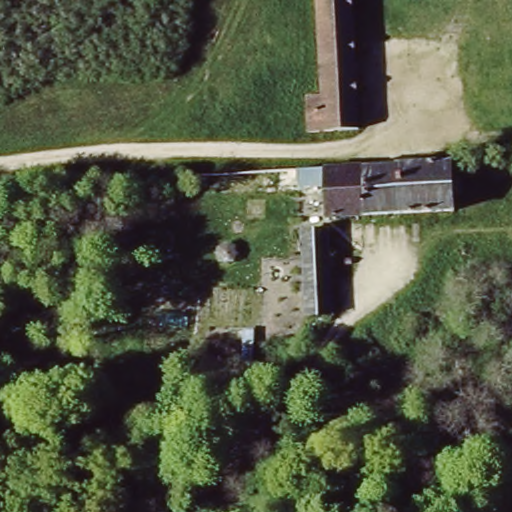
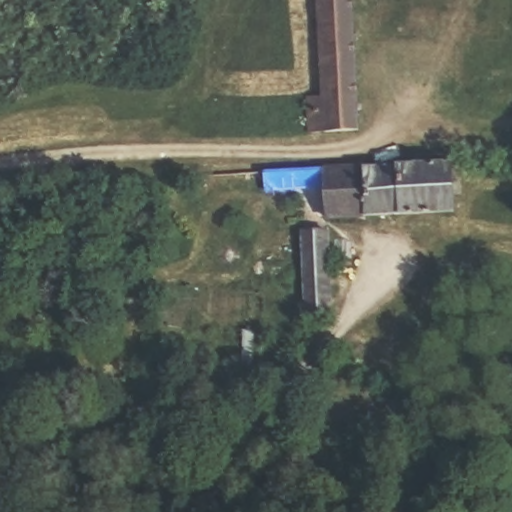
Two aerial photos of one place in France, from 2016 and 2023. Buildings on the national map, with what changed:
unchanged [(355,136),(309,138),(307,97),(315,95),(315,67),(320,66),(318,0),(351,0),(355,136)]
unchanged [(457,212),(330,222),(329,188),(214,189),(213,179),(455,162),(457,212)]
unchanged [(160,222),(159,199),(179,199),(180,222),(160,222)]
unchanged [(332,235),(334,322),(312,322),(310,237),(332,235)]

